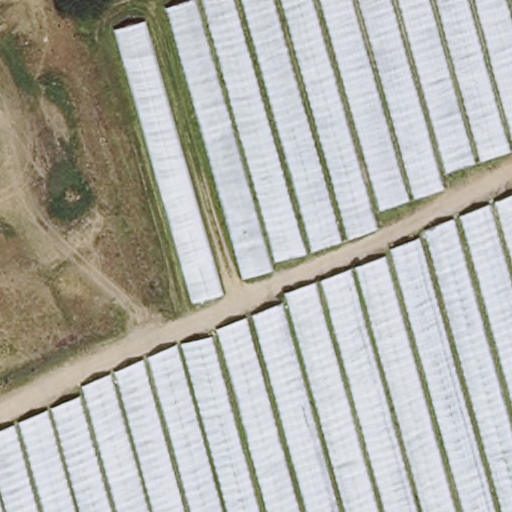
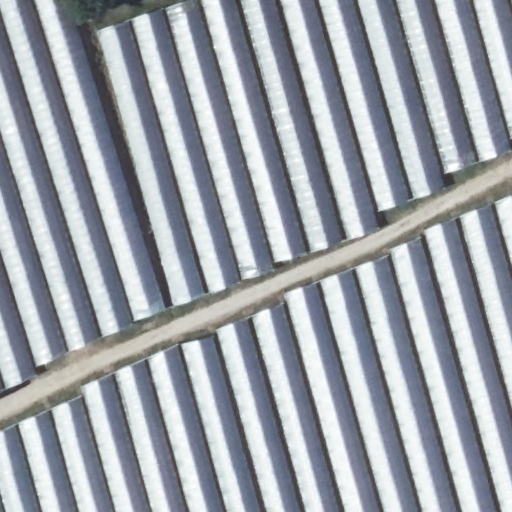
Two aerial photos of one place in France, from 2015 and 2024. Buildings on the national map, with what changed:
new [(34,369),(36,377),(0,392),(0,0),(69,0),(165,312),(34,369)]
unchanged [(114,28),(199,0),(512,0),(512,138),(509,139),(511,152),(439,174),(444,192),(375,214),(380,230),(193,304),(114,28)]
unchanged [(382,257),(423,231),(512,193),(512,512),(0,512),(0,439),(297,289),(382,257)]

